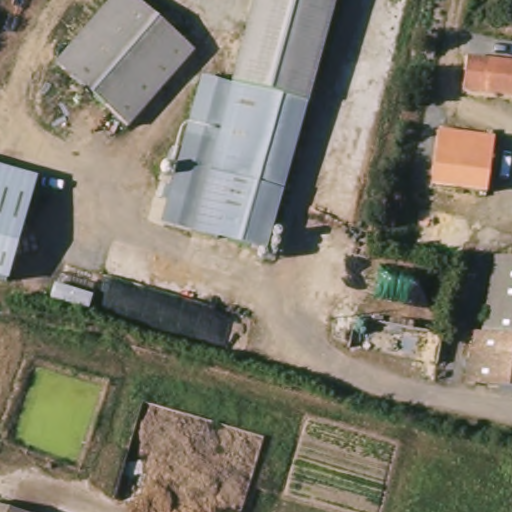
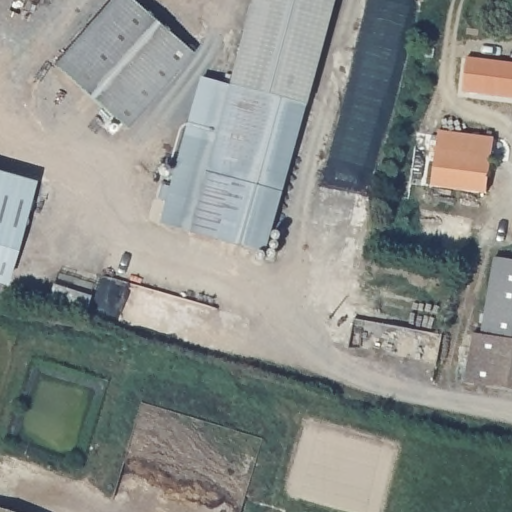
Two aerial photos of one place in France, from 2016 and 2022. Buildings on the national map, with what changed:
unchanged [(137,0),(192,50),(126,130),(59,63),(115,0),(137,0)]
unchanged [(169,226),(202,109),(232,117),(237,94),(261,0),(338,0),(310,113),(276,253),(169,226)]
unchanged [(512,99),(465,91),(471,58),(512,65),(512,99)]
unchanged [(495,152),(492,179),(492,199),(433,186),(433,182),(441,138),(495,152)]
unchanged [(34,167),(21,271),(0,268),(0,163),(34,167)]
unchanged [(512,390),(469,383),(478,324),(482,323),(492,258),(512,262),(512,390)]

